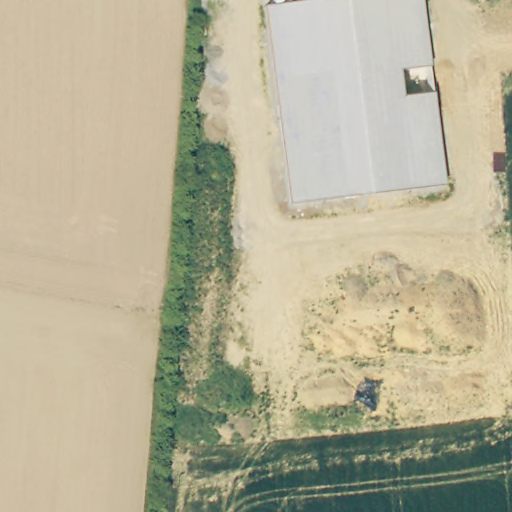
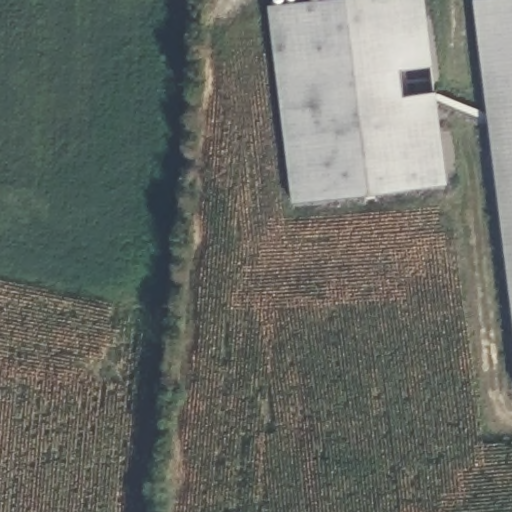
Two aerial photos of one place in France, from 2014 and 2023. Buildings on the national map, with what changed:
unchanged [(269,5),(269,0),(422,0),(429,67),(398,71),(401,98),(433,94),(444,186),(289,205),(265,6),(269,5)]
new [(512,338),(471,0),(512,0),(512,338)]

